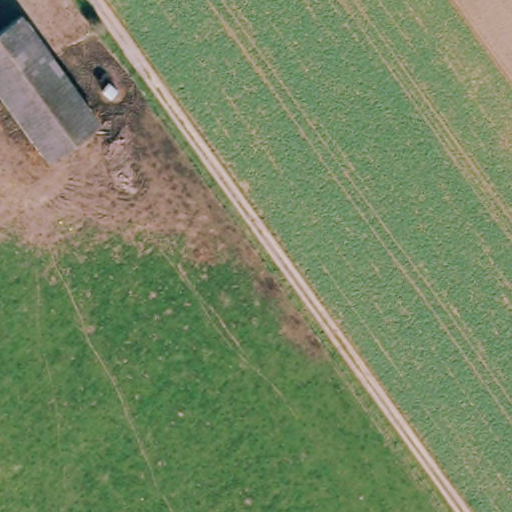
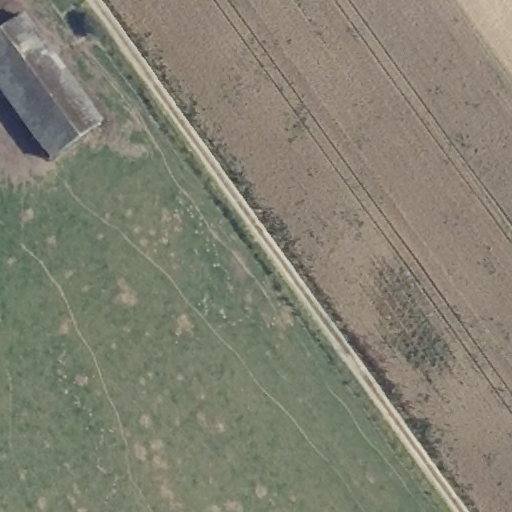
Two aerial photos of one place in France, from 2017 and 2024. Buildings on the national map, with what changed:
unchanged [(18,14),(93,121),(38,165),(0,110),(0,27),(18,14)]

